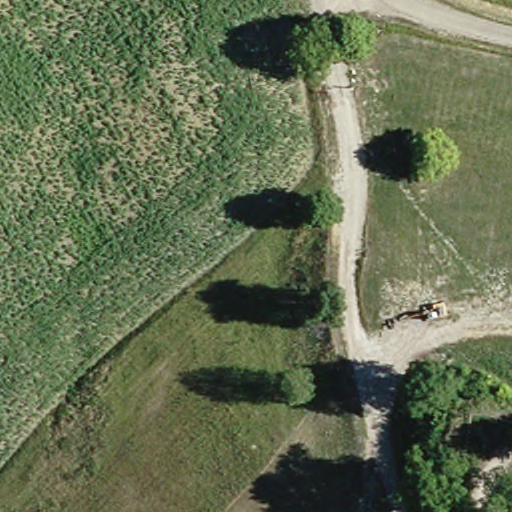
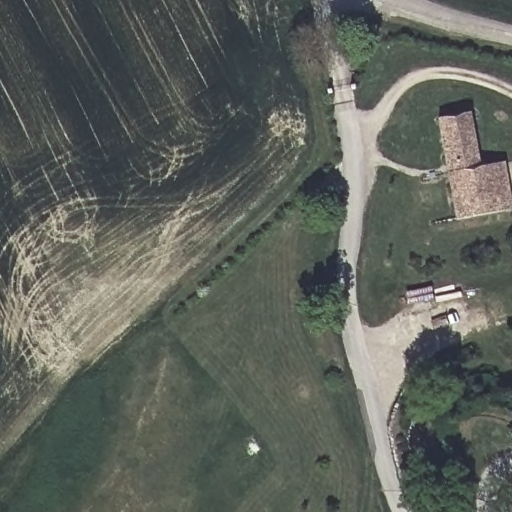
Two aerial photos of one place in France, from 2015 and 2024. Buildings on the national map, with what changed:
new [(481,166),(505,162),(512,206),(512,209),(456,219),(438,118),(471,112),(481,166)]

